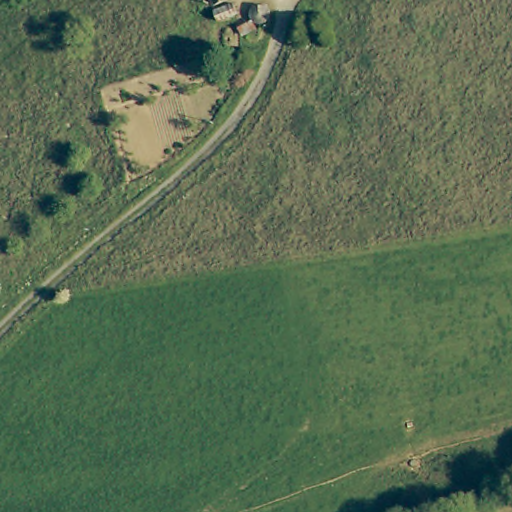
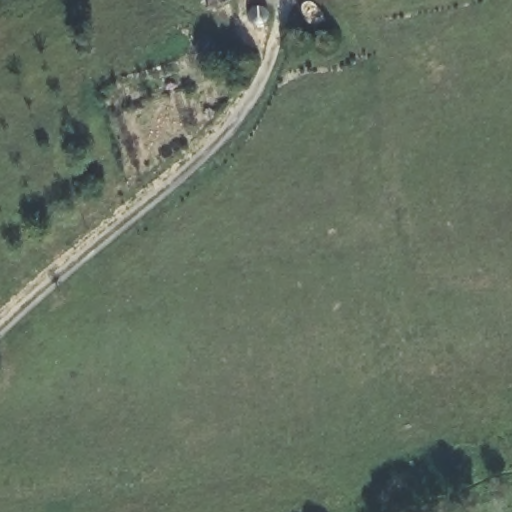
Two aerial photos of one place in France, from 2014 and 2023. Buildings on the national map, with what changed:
unchanged [(207,0),(222,0),(209,5),(207,0)]
unchanged [(238,14),(221,22),(218,16),(212,10),(232,1),(238,14)]
unchanged [(264,4),(267,6),(269,10),(269,14),(269,18),(267,20),(264,23),(259,23),(255,21),(252,19),(251,15),(251,10),(254,6),(256,5),(259,4),(264,4)]

